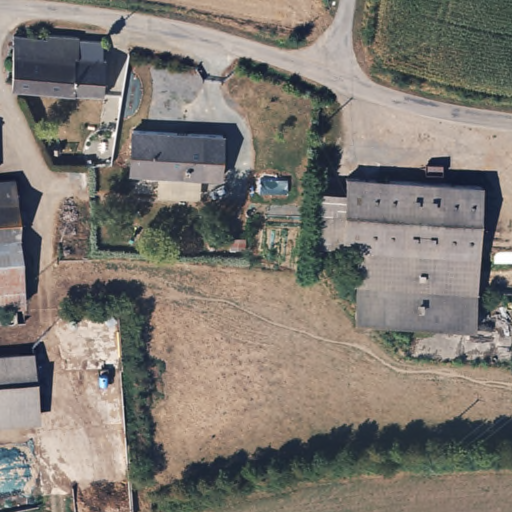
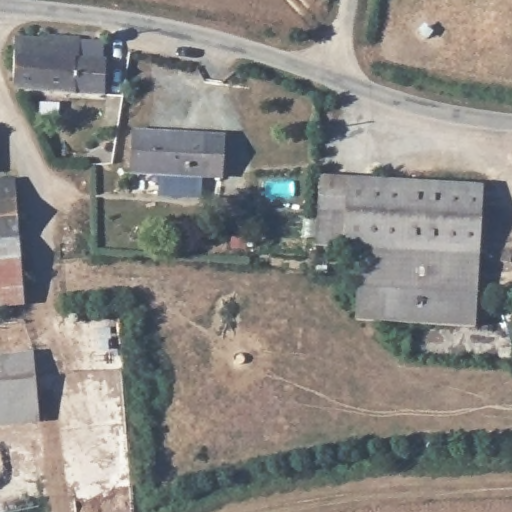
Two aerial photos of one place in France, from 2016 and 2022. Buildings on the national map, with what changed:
unchanged [(72,30),(72,34),(78,34),(80,89),(4,91),(2,37),(41,37),(41,30),(72,30)]
unchanged [(226,135),(223,180),(129,173),(133,129),(226,135)]
unchanged [(476,276),(358,274),(366,239),(325,235),(320,235),(323,174),(487,187),(476,276)]
unchanged [(17,188),(18,269),(13,270),(0,271),(0,189),(17,188)]
unchanged [(13,270),(16,316),(0,316),(0,271),(13,270)]
unchanged [(476,276),(475,334),(357,332),(358,274),(476,276)]
unchanged [(31,348),(41,413),(0,418),(0,351),(31,348)]

